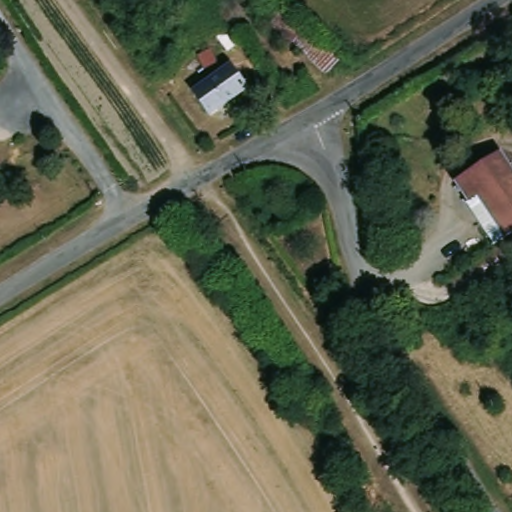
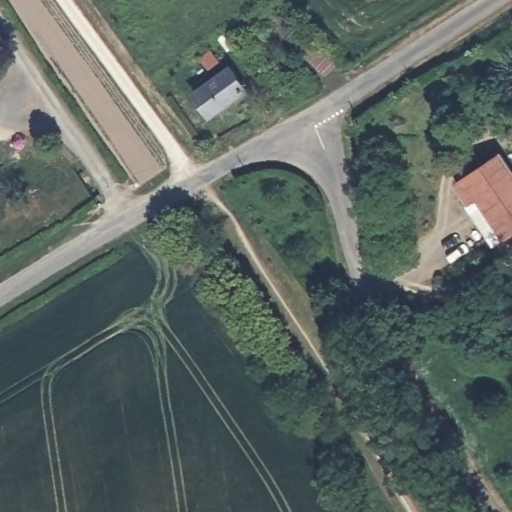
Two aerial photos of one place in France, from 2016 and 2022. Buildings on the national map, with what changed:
unchanged [(331,85),(326,79),(305,46),(299,49),(277,15),(295,3),(318,25),(342,66),(347,75),(331,85)]
unchanged [(240,36),(226,46),(214,31),(228,21),(240,36)]
unchanged [(209,45),(216,55),(205,62),(197,51),(209,45)]
unchanged [(236,69),(249,86),(215,110),(202,91),(236,69)]
unchanged [(474,203),(462,185),(507,155),(512,163),(512,234),(508,237),(495,246),(468,207),(474,203)]

